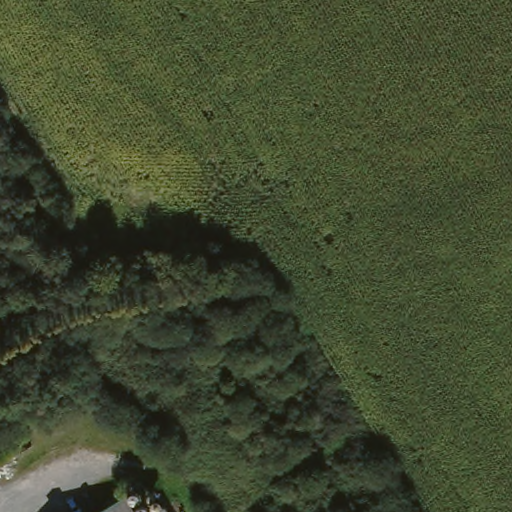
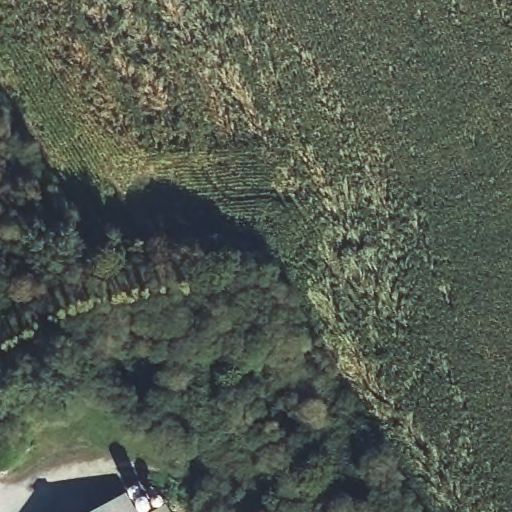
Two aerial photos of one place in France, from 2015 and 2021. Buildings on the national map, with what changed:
unchanged [(122,500),(130,512),(103,512),(122,500)]
unchanged [(164,509),(166,512),(159,512),(164,509)]

